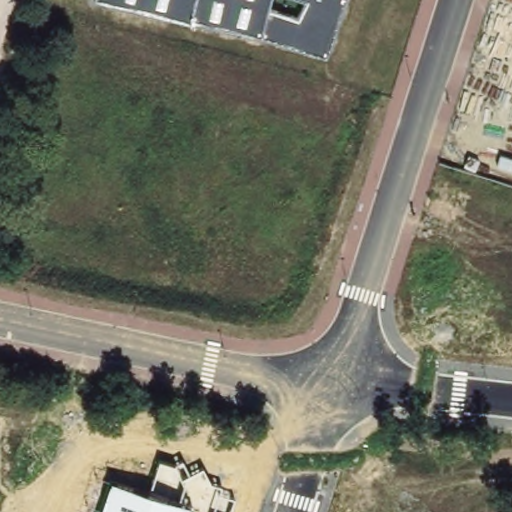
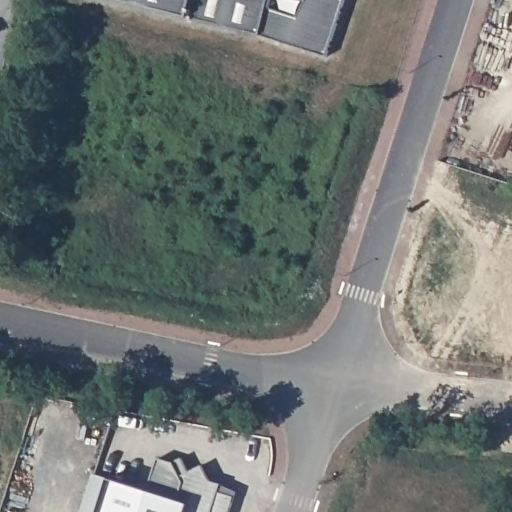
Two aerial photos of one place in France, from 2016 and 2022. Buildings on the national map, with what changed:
unchanged [(326,56),(260,35),(189,17),(115,0),(269,0),(267,9),(299,20),(308,1),(304,0),(343,0),(326,56)]
unchanged [(159,461),(174,465),(181,459),(188,473),(203,466),(210,483),(221,486),(219,494),(234,498),(230,512),(100,512),(110,480),(149,493),(159,461)]

